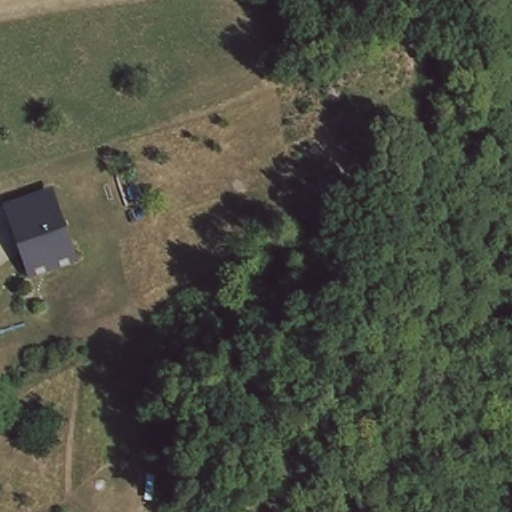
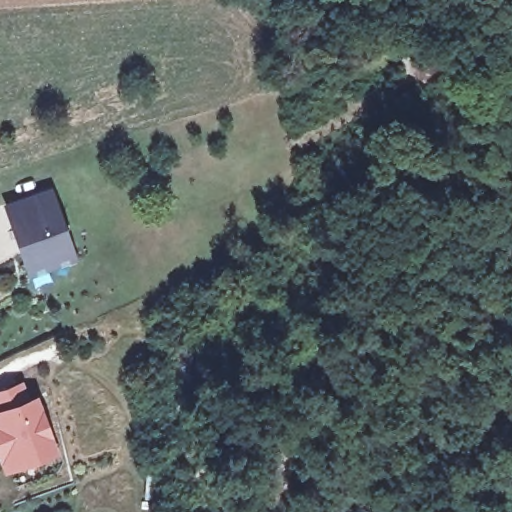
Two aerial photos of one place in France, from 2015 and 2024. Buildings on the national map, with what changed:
unchanged [(30,269),(28,259),(11,201),(49,189),(63,236),(68,255),(30,269)]
new [(24,378),(30,395),(38,392),(60,453),(5,474),(0,461),(0,387),(24,378)]

